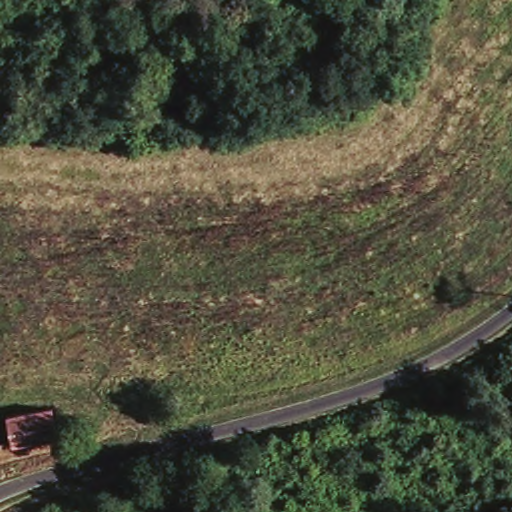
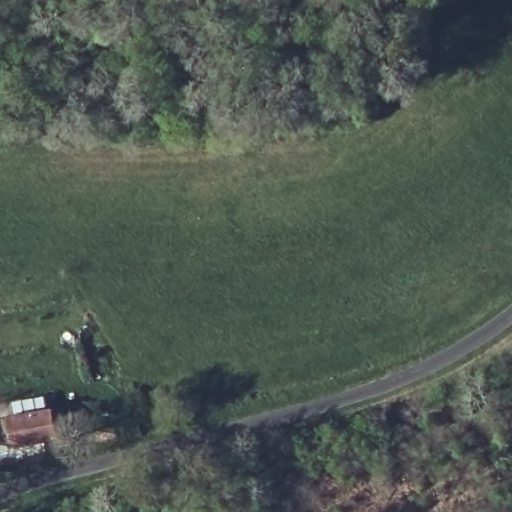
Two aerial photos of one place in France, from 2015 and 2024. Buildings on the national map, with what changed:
unchanged [(52,407),(57,434),(12,443),(7,416),(52,407)]

